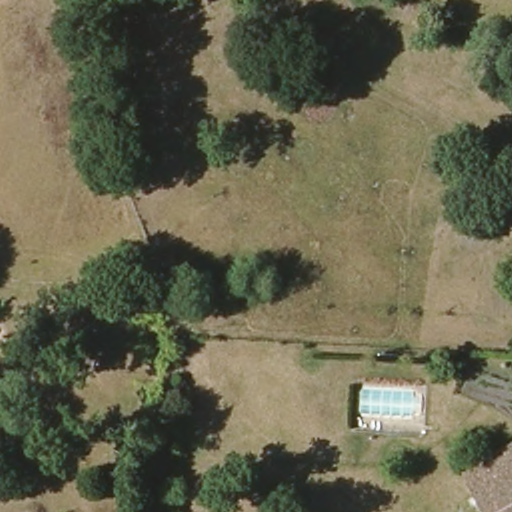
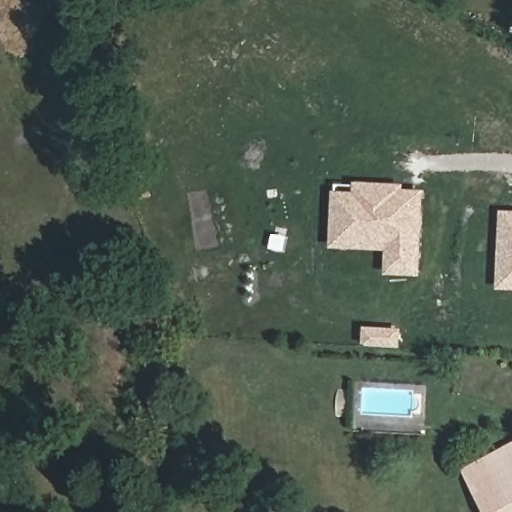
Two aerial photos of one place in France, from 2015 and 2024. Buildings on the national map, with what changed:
new [(332,250),(333,193),(353,194),(355,184),(405,187),(405,190),(425,192),(421,279),(386,276),(387,252),(332,250)]
new [(498,291),(501,211),(512,212),(512,291),(498,291)]
unchanged [(512,446),(512,512),(487,512),(465,473),(512,446)]

